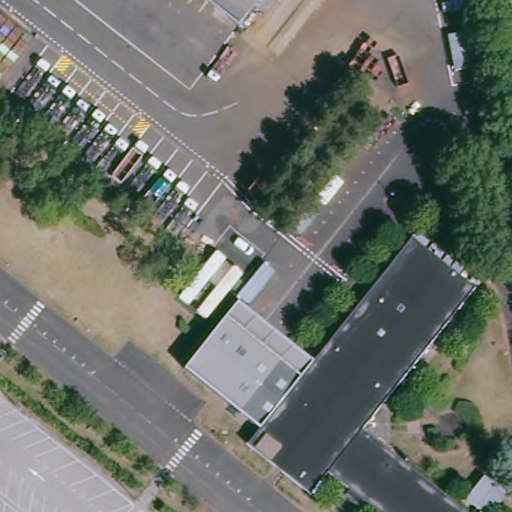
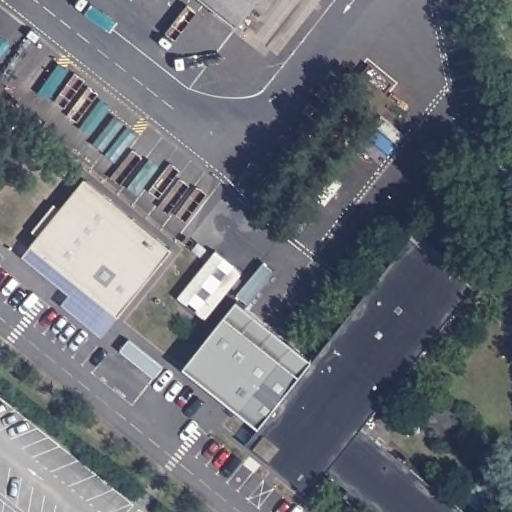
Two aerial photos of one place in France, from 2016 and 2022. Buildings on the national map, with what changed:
unchanged [(257,3),(240,25),(209,0),(273,0),(266,9),(257,3)]
new [(117,317),(101,338),(62,306),(70,296),(23,257),(39,238),(33,232),(55,207),(60,210),(86,179),(172,251),(117,317)]
unchanged [(259,424),(215,387),(252,339),(297,375),(310,358),(406,238),(470,288),(361,429),(463,512),(373,512),(325,474),(314,489),(308,495),(242,446),(248,438),(259,424)]
unchanged [(238,302),(257,316),(310,358),(297,375),(252,339),(215,387),(187,366),(238,302)]

